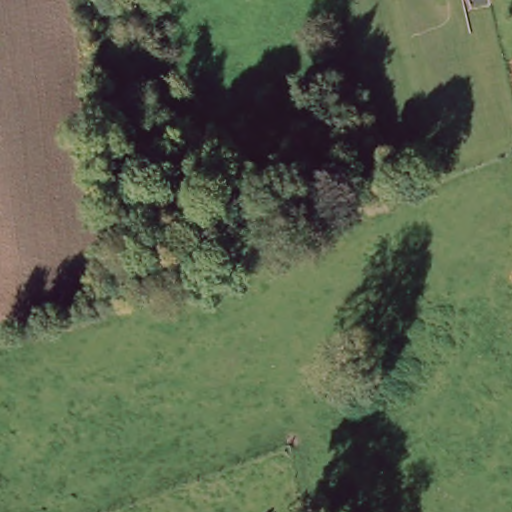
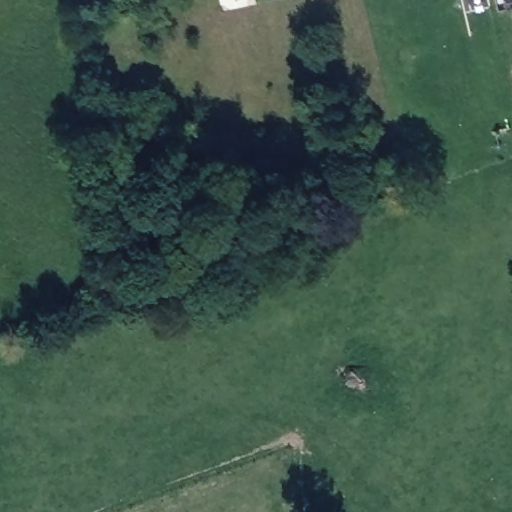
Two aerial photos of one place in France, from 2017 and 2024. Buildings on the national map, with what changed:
[]

